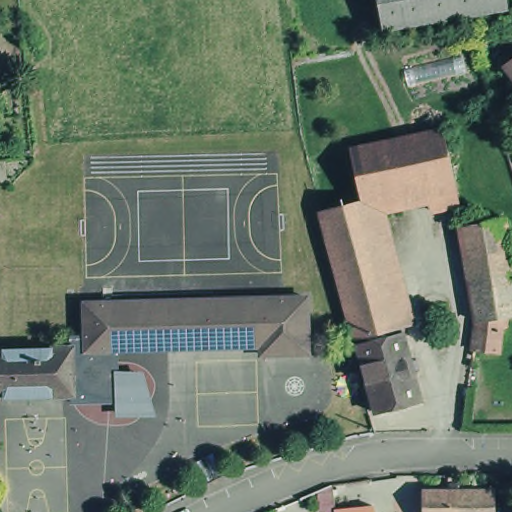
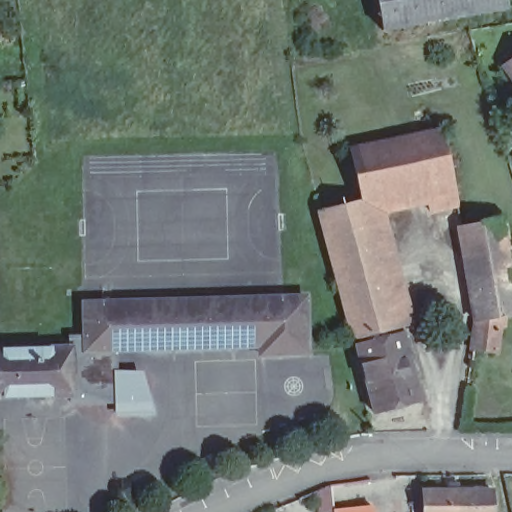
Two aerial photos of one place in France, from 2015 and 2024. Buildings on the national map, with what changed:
unchanged [(384,29),(378,0),(507,0),(509,6),(384,29)]
unchanged [(506,61),(512,57),(512,71),(506,61)]
unchanged [(426,211),(422,186),(362,199),(358,200),(346,152),(439,132),(449,181),(454,205),(426,211)]
unchanged [(397,328),(350,340),(316,211),(358,200),(362,199),(397,328)]
unchanged [(484,311),(476,268),(472,247),(467,218),(509,210),(512,231),(512,307),(511,307),(512,315),(507,314),(504,343),(479,340),(484,311)]
unchanged [(116,345),(73,346),(73,343),(72,343),(71,332),(86,332),(85,299),(203,295),(309,292),(310,348),(263,349),(263,341),(203,343),(116,345)]
unchanged [(398,333),(416,400),(373,412),(354,346),(398,333)]
unchanged [(73,346),(75,391),(73,391),(0,393),(0,345),(72,343),(73,343),(73,346)]
unchanged [(75,391),(73,346),(116,345),(118,397),(73,399),(73,391),(75,391)]
unchanged [(429,484),(499,485),(499,512),(429,512),(429,484)]
unchanged [(379,501),(380,512),(336,512),(334,503),(379,501)]

